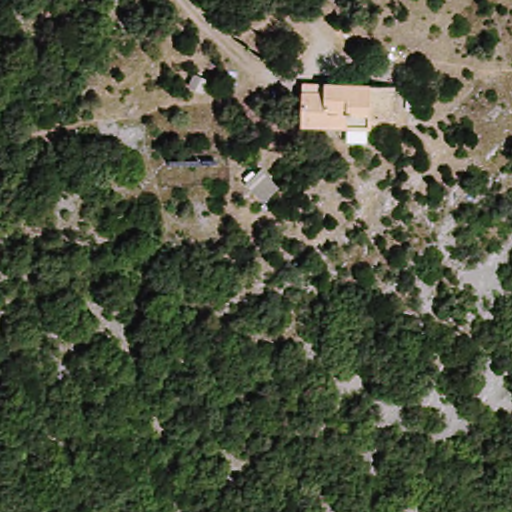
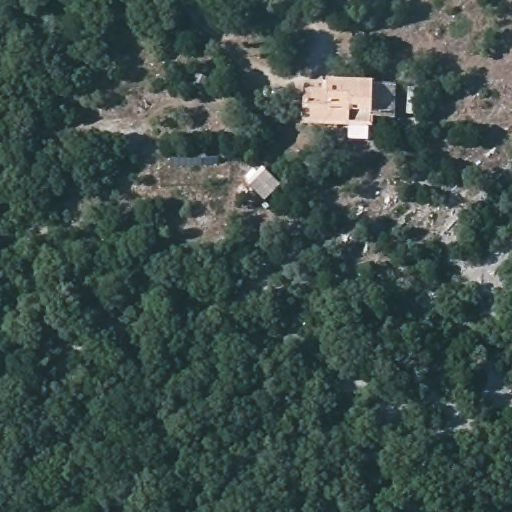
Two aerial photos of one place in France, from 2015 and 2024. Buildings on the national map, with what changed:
unchanged [(402,126),(299,123),(300,84),(326,82),(339,71),(403,79),(402,126)]
unchanged [(288,192),(268,207),(248,184),(266,164),(288,192)]

